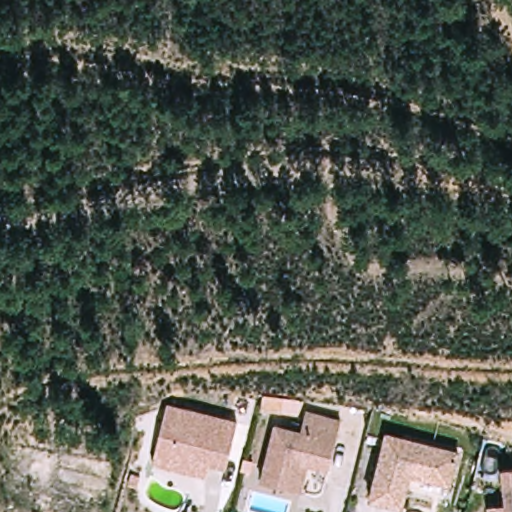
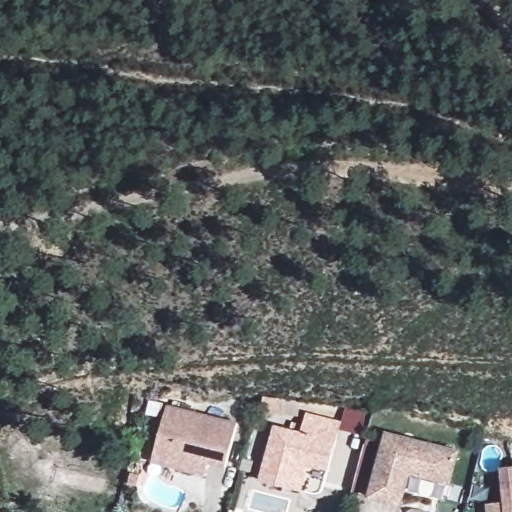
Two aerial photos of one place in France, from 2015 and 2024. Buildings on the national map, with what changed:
unchanged [(279,403),(301,409),(298,422),(275,416),(279,403)]
unchanged [(150,463),(151,457),(165,407),(236,426),(224,470),(207,466),(204,478),(150,463)]
unchanged [(292,490),(261,481),(275,428),(305,437),(311,416),(346,426),(333,472),(310,467),(302,493),(292,490)]
unchanged [(456,452),(448,484),(409,474),(400,507),(368,498),(384,433),(456,452)]
unchanged [(505,500),(502,465),(512,463),(512,512),(488,512),(487,501),(505,500)]

